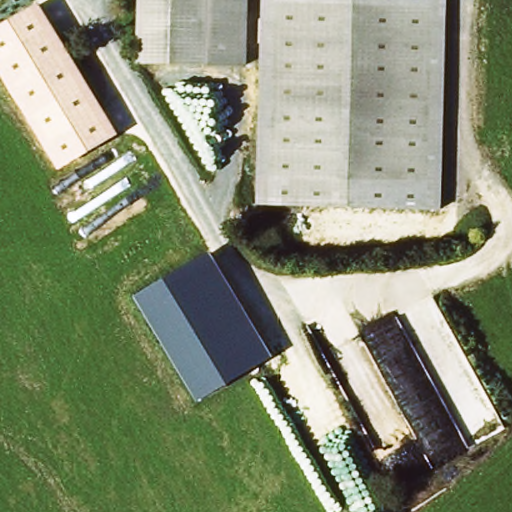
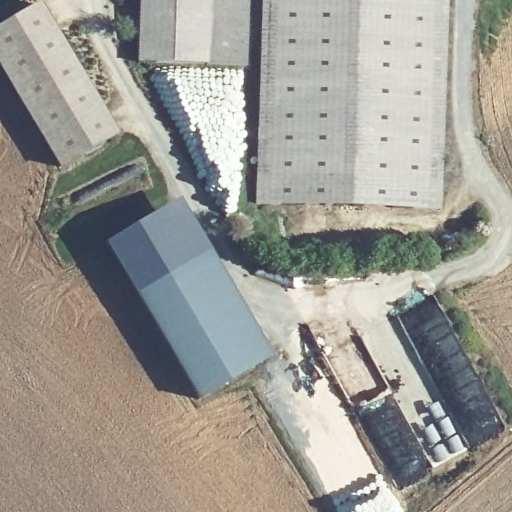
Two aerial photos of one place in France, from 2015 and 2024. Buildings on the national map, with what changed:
unchanged [(142,0),(246,0),(244,65),(140,64),(142,0)]
unchanged [(264,0),(449,0),(440,199),(255,192),(264,0)]
unchanged [(60,170),(0,72),(0,28),(40,4),(118,135),(60,170)]
new [(135,297),(102,246),(179,202),(210,252),(135,297)]
unchanged [(135,297),(210,252),(273,356),(198,401),(135,297)]

